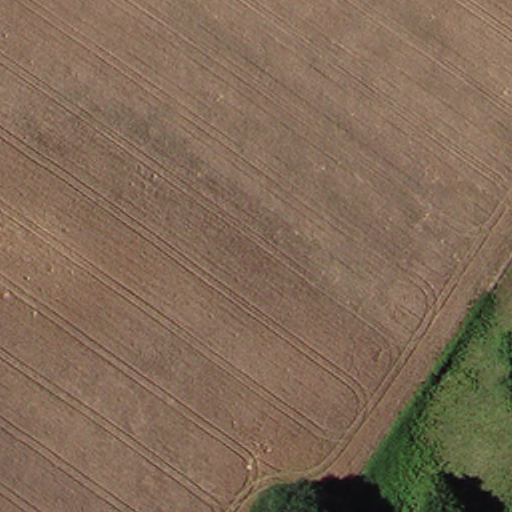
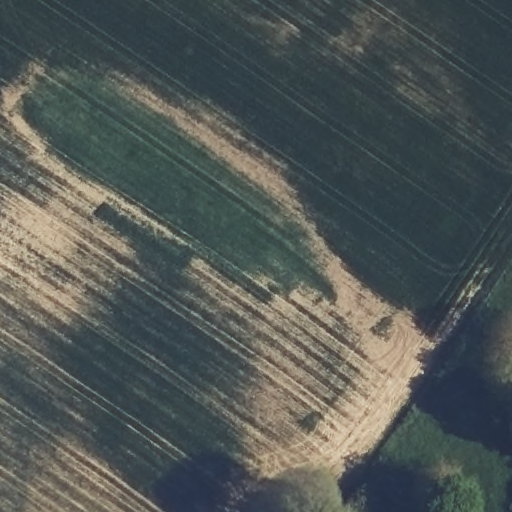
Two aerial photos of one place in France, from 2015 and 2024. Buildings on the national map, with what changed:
[]

